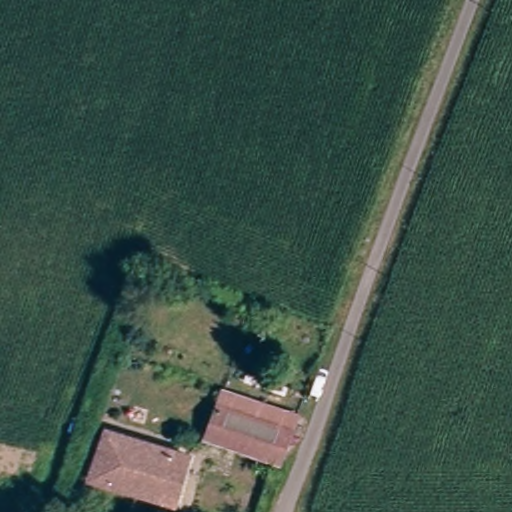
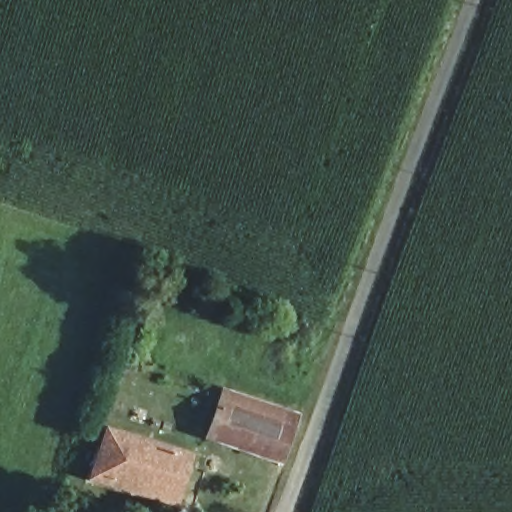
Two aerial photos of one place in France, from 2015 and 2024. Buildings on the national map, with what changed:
unchanged [(279,464),(211,439),(227,389),(296,414),(279,464)]
unchanged [(193,455),(176,499),(98,479),(113,431),(193,455)]

